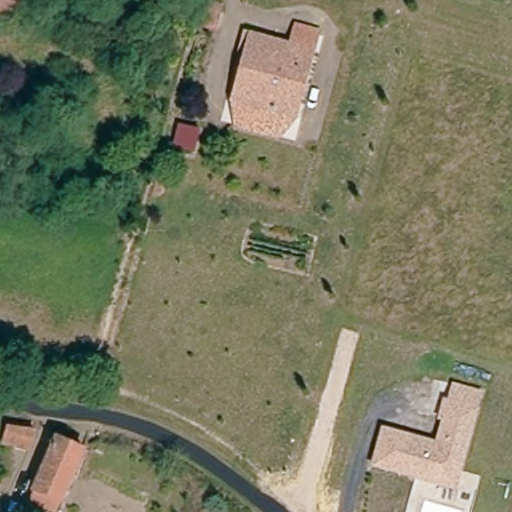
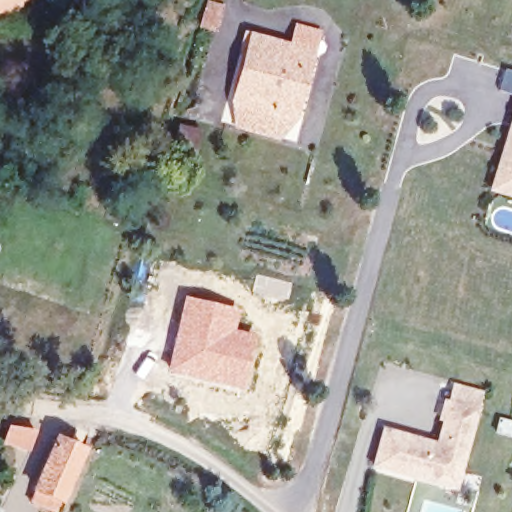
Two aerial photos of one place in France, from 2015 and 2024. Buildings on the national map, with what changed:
unchanged [(0,20),(0,0),(29,0),(32,11),(0,20)]
unchanged [(220,29),(206,25),(214,0),(227,4),(220,29)]
unchanged [(292,41),(299,19),(321,25),(315,48),(296,113),(239,97),(257,32),(292,41)]
unchanged [(296,113),(281,132),(242,121),(239,97),(296,113)]
unchanged [(182,124),(196,128),(190,147),(177,143),(182,124)]
new [(493,194),(506,152),(512,132),(512,201),(493,194)]
new [(256,273),(293,282),(288,301),(252,292),(256,273)]
new [(184,295),(240,308),(236,328),(259,334),(246,391),(166,372),(184,295)]
unchanged [(382,425),(434,439),(440,420),(436,419),(442,395),(447,397),(451,381),(483,389),(457,489),(370,465),(382,425)]
unchanged [(44,425),(36,447),(10,438),(15,422),(44,425)]
unchanged [(60,437),(88,449),(67,499),(62,512),(60,512),(33,500),(39,488),(60,437)]
unchanged [(0,510),(0,502),(2,503),(0,510)]

